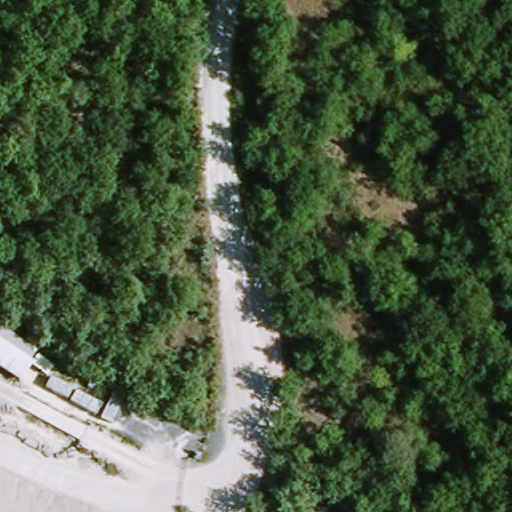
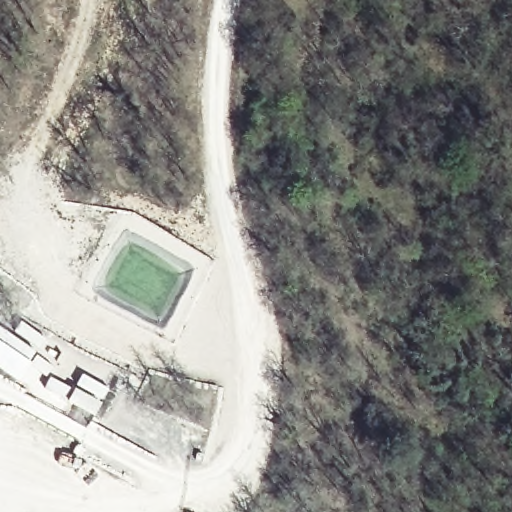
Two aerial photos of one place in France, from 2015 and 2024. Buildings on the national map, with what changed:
unchanged [(24,380),(0,366),(0,325),(42,352),(24,380)]

